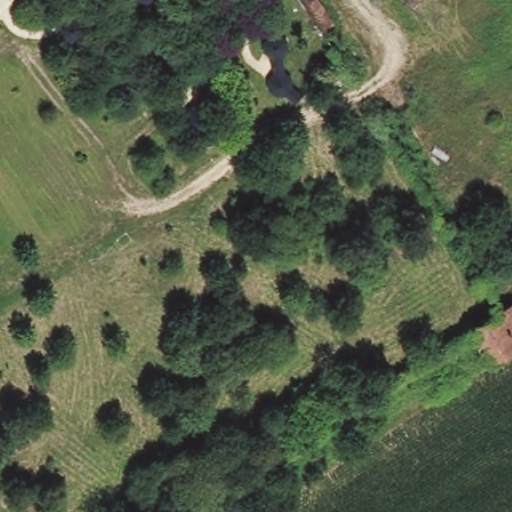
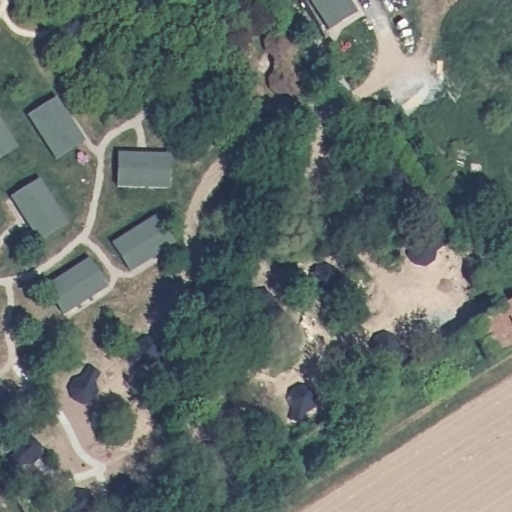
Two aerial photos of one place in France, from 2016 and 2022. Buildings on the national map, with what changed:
unchanged [(298,0),(321,0),(335,25),(321,37),(298,0)]
new [(53,157),(26,115),(55,98),(82,140),(53,157)]
new [(0,118),(16,145),(0,155),(0,118)]
new [(166,189),(115,187),(117,152),(169,154),(166,189)]
new [(38,239),(10,197),(40,178),(66,221),(38,239)]
new [(130,272),(111,242),(155,215),(173,244),(130,272)]
new [(62,314),(44,286),(87,258),(106,286),(62,314)]
unchanged [(512,299),(512,338),(487,353),(485,354),(468,329),(485,317),(500,307),(512,299)]
new [(0,385),(9,399),(0,404),(0,385)]

